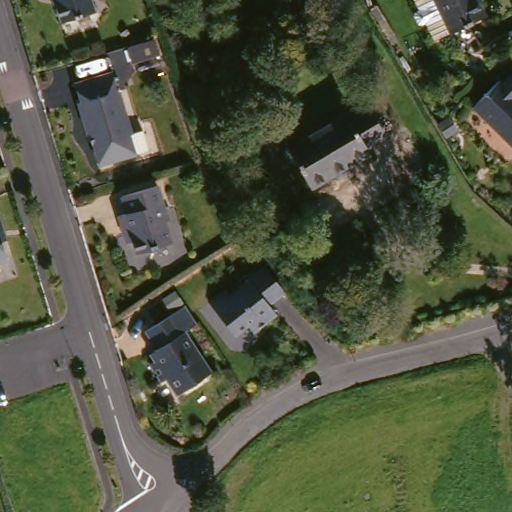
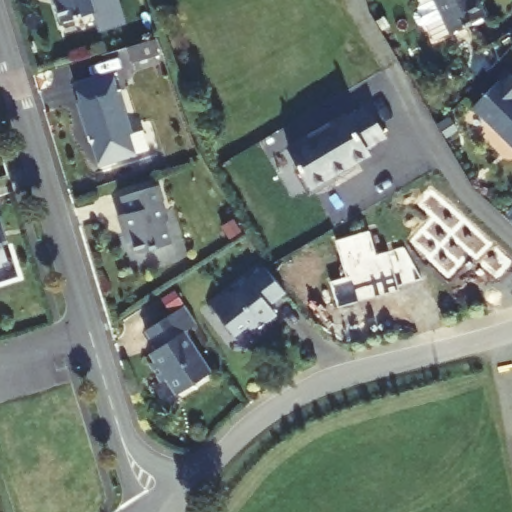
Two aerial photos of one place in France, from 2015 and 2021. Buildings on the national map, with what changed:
unchanged [(99,9),(64,19),(59,0),(97,0),(99,9)]
unchanged [(461,32),(445,42),(434,25),(430,27),(427,27),(420,16),(421,13),(425,10),(419,0),(441,0),(461,32)]
unchanged [(441,0),(487,0),(493,10),(461,32),(441,0)]
unchanged [(172,50),(146,58),(141,43),(169,35),(172,50)]
unchanged [(152,150),(138,154),(99,165),(90,134),(80,101),(75,82),(116,70),(134,134),(146,130),(152,150)]
unchanged [(509,79),(511,82),(512,81),(512,136),(483,107),(509,79)]
unchanged [(349,110),(352,116),(370,106),(387,135),(371,147),(373,151),(318,186),(292,147),(349,110)]
unchanged [(118,214),(127,211),(122,194),(159,184),(169,219),(166,220),(172,242),(136,252),(133,239),(126,241),(118,214)]
unchanged [(4,205),(10,223),(4,225),(14,252),(0,257),(0,206),(4,205)]
unchanged [(269,264),(273,270),(287,288),(289,291),(273,303),(280,312),(257,330),(251,322),(238,333),(213,301),(229,287),(234,294),(252,279),(251,278),(269,264)]
unchanged [(179,289),(187,302),(175,309),(167,297),(179,289)]
unchanged [(215,372),(181,394),(170,378),(166,381),(154,363),(159,360),(157,357),(158,350),(161,348),(150,331),(190,305),(202,324),(189,332),(215,372)]

